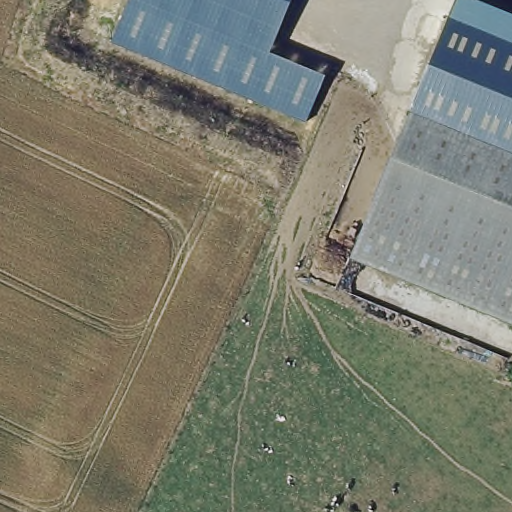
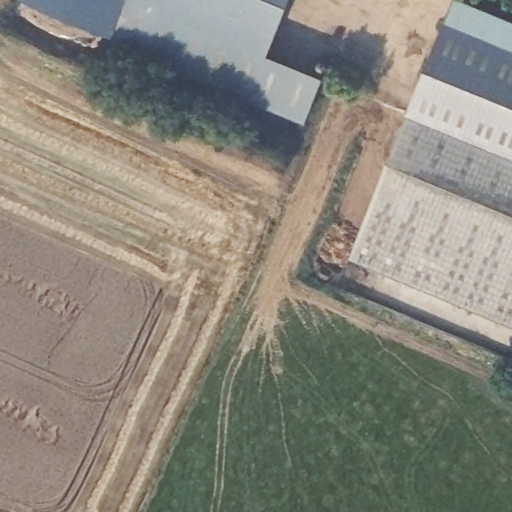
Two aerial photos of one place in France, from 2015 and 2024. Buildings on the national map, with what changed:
new [(128,0),(113,34),(33,0),(128,0)]
unchanged [(306,121),(110,42),(128,0),(292,0),(270,52),(325,74),(306,121)]
unchanged [(457,0),(479,0),(512,13),(512,35),(452,10),(457,0)]
unchanged [(512,142),(415,102),(436,51),(452,10),(512,35),(512,142)]
unchanged [(512,316),(356,254),(415,102),(512,142),(512,316)]

